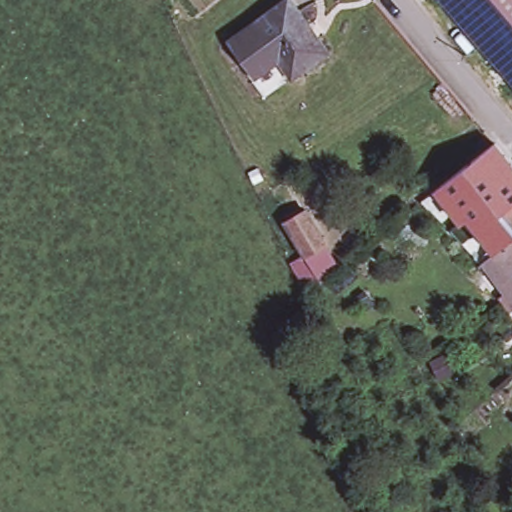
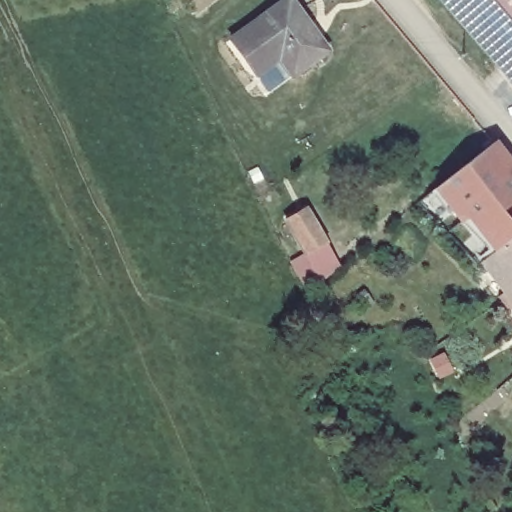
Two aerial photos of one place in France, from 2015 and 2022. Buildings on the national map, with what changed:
unchanged [(270,61),(252,74),(226,39),(250,22),(280,0),(288,0),(323,49),(288,74),(286,76),(283,78),(270,61)]
unchanged [(439,0),(512,0),(512,84),(439,0)]
unchanged [(505,210),(503,212),(492,222),(487,215),(468,229),(450,205),(468,191),(453,172),(495,139),(496,142),(512,162),(512,218),(505,210)]
unchanged [(324,242),(305,254),(284,219),(303,207),(324,242)]
unchanged [(496,274),(485,258),(512,233),(512,295),(496,274)]
unchanged [(327,242),(340,266),(304,287),(291,263),(305,256),(327,242)]

